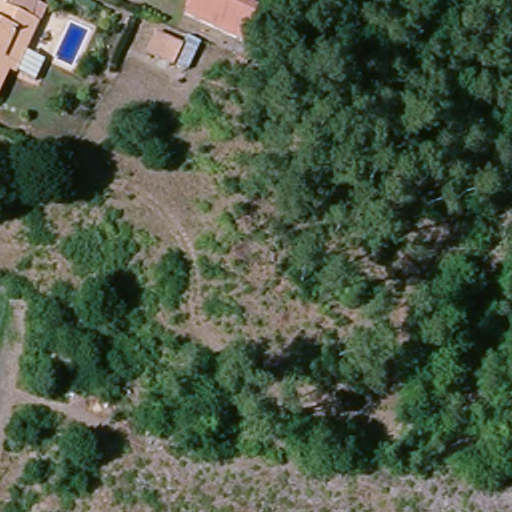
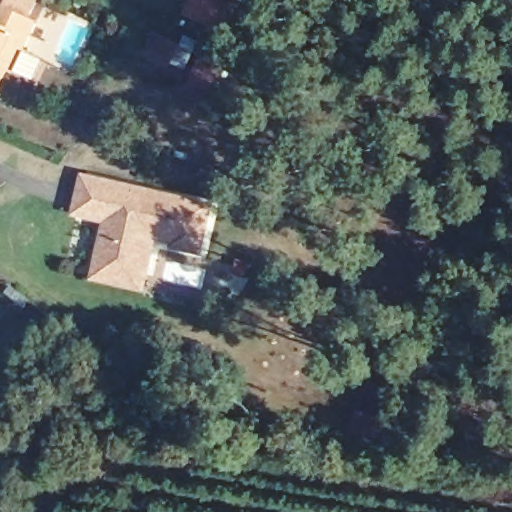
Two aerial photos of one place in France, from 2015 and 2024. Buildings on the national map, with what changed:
unchanged [(3,72),(0,78),(0,6),(12,14),(22,0),(39,0),(51,9),(38,30),(37,32),(17,65),(9,77),(3,72)]
unchanged [(236,32),(185,8),(189,0),(242,0),(250,4),(236,32)]
unchanged [(169,45),(162,59),(144,51),(151,36),(169,45)]
new [(173,248),(174,244),(160,241),(147,292),(92,280),(105,221),(73,213),(82,172),(217,202),(205,255),(173,248)]

